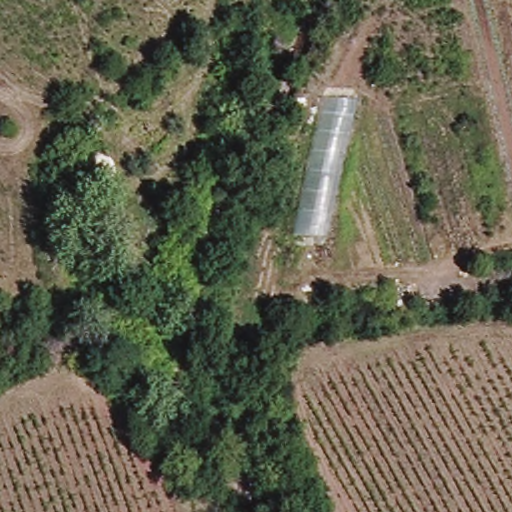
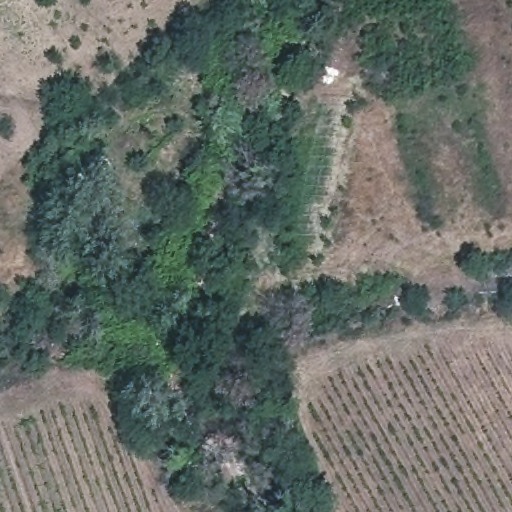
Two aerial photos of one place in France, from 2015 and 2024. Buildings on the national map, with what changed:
demolished [(317,93),(355,99),(323,239),(285,234),(317,93)]

